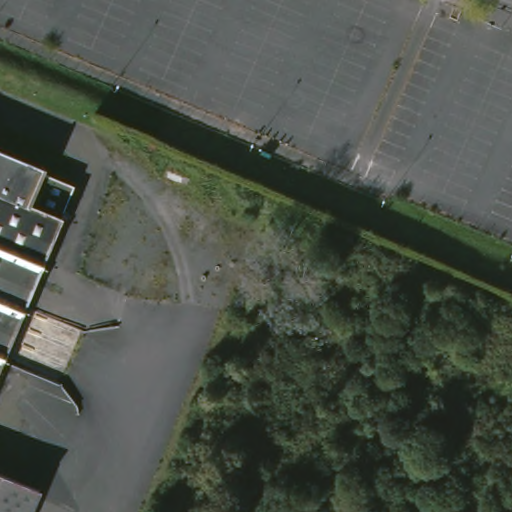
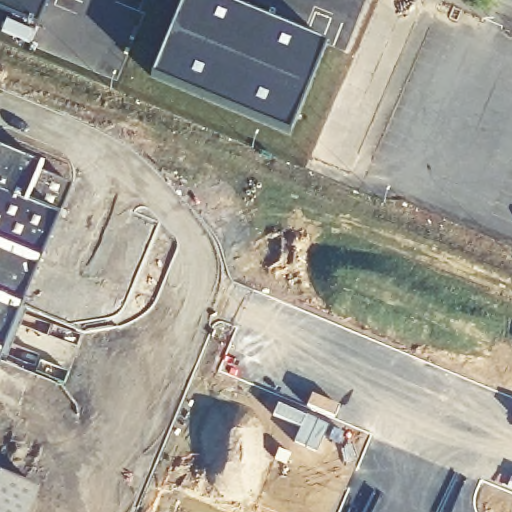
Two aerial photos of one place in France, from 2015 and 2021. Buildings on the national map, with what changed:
new [(0,9),(0,0),(47,0),(37,24),(0,9)]
new [(221,0),(325,43),(288,133),(150,76),(181,0),(221,0)]
unchanged [(49,172),(79,186),(0,377),(0,147),(51,168),(49,172)]
unchanged [(38,512),(0,512),(0,474),(46,492),(38,512)]

